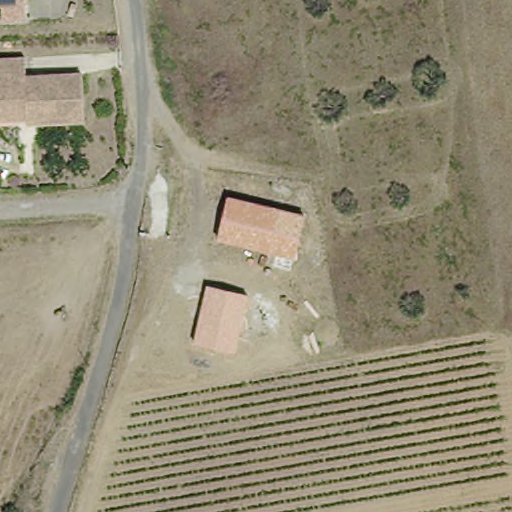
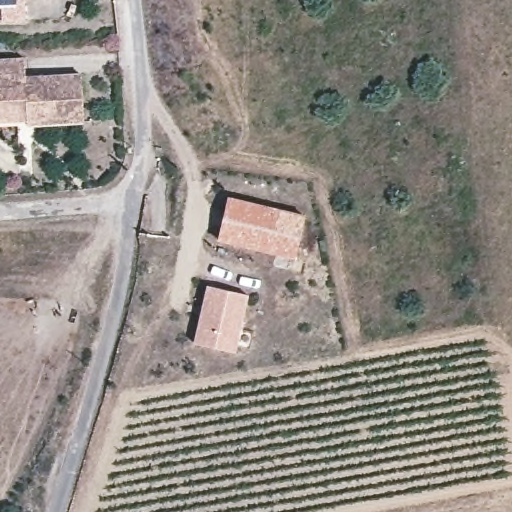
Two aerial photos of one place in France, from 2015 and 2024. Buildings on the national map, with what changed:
unchanged [(19,5),(20,18),(0,19),(0,0),(19,0),(19,5)]
unchanged [(26,122),(0,124),(0,61),(23,60),(26,81),(83,77),(87,125),(50,128),(26,130),(26,122)]
unchanged [(219,239),(228,196),(305,215),(295,259),(219,239)]
unchanged [(195,342),(208,286),(249,295),(236,353),(195,342)]

